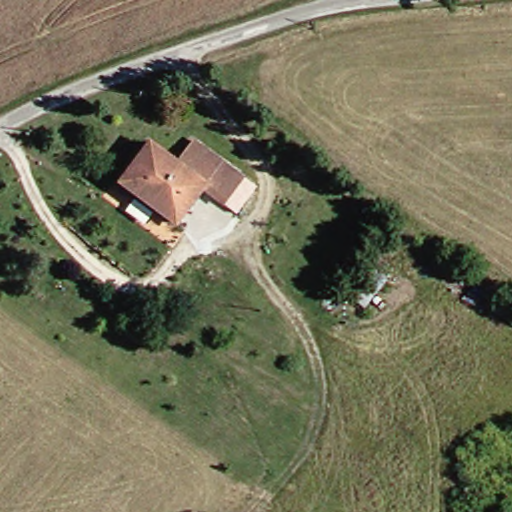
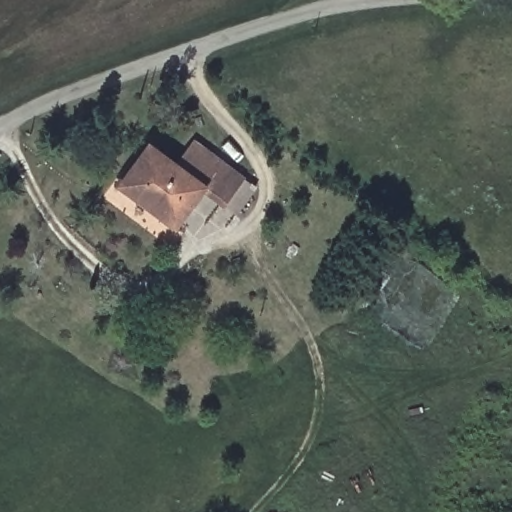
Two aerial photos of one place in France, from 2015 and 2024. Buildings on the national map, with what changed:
unchanged [(229,199),(206,186),(182,222),(124,183),(153,143),(180,159),(191,139),(210,146),(246,169),(229,199)]
unchanged [(375,261),(396,277),(370,311),(349,297),(375,261)]

